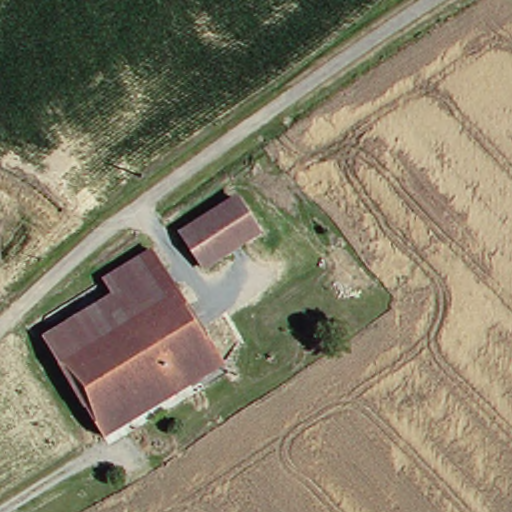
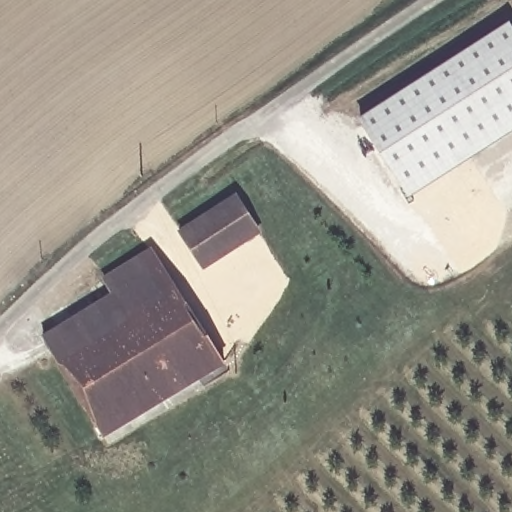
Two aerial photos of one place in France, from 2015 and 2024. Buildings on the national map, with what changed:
new [(405,183),(362,114),(511,21),(512,23),(512,117),(405,183)]
unchanged [(183,227),(240,191),(264,228),(273,222),(285,241),(272,250),(261,234),(209,266),(183,227)]
unchanged [(230,359),(104,440),(51,340),(120,296),(113,285),(161,247),(230,359)]

